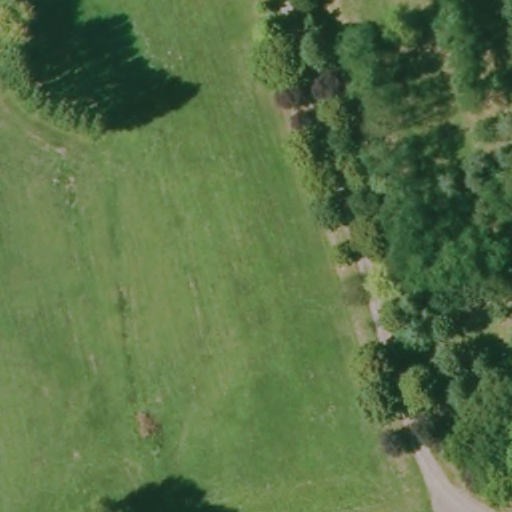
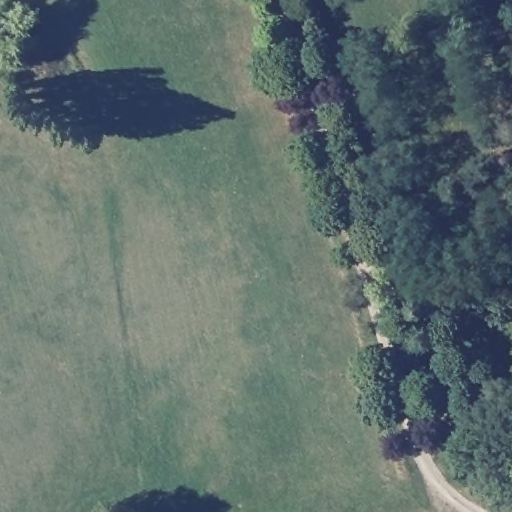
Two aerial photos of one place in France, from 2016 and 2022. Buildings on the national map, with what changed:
[]

